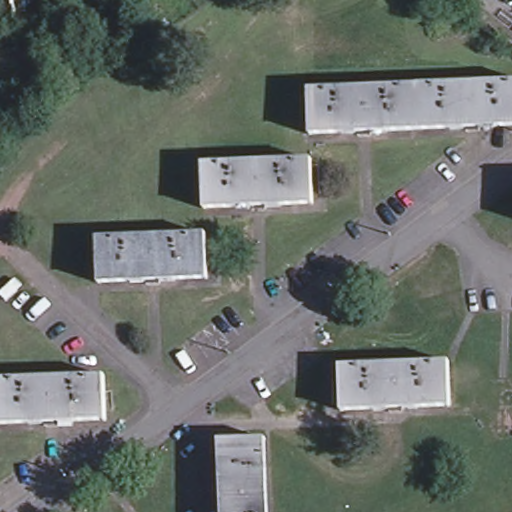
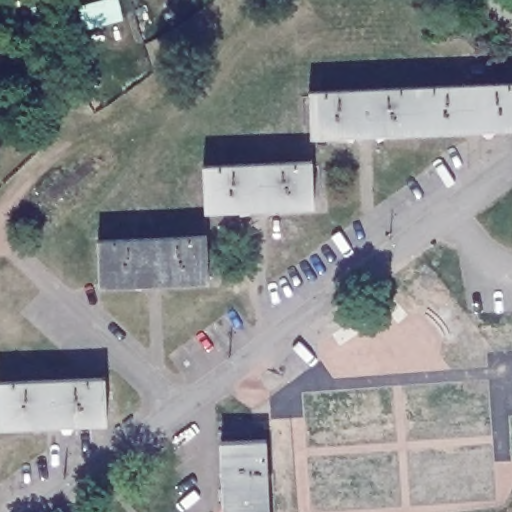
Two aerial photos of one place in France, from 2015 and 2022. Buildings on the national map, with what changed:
unchanged [(306,87),(512,82),(512,126),(307,130),(306,87)]
unchanged [(205,161),(315,157),(317,204),(207,209),(205,161)]
unchanged [(97,236),(207,232),(209,278),(99,281),(97,236)]
demolished [(340,368),(449,363),(450,408),(342,412),(340,368)]
unchanged [(105,417),(0,420),(0,375),(104,372),(105,417)]
unchanged [(220,444),(264,441),(268,512),(224,512),(220,444)]

